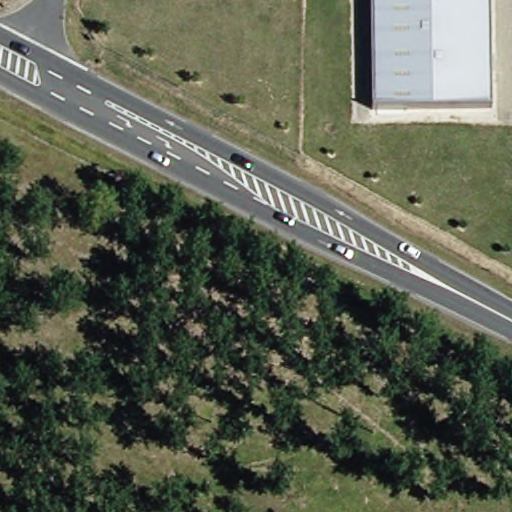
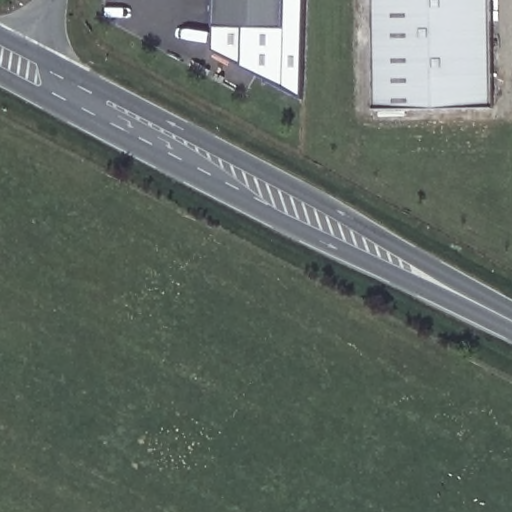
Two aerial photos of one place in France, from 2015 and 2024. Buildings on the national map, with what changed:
new [(285,32),(213,31),(214,0),(286,0),(285,32)]
new [(285,32),(286,0),(305,0),(303,97),(243,67),(213,51),(213,31),(285,32)]
unchanged [(496,109),(376,111),(374,0),(494,0),(496,109)]

